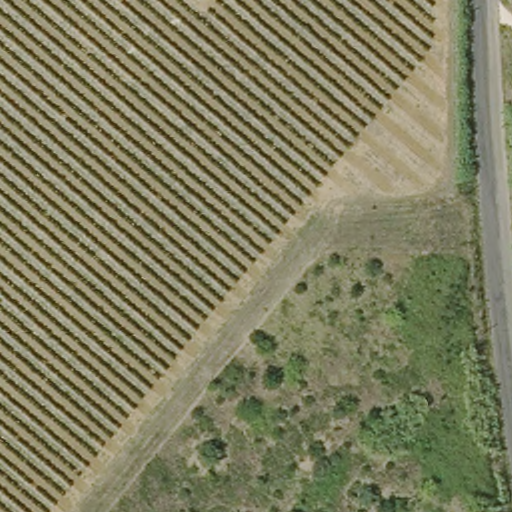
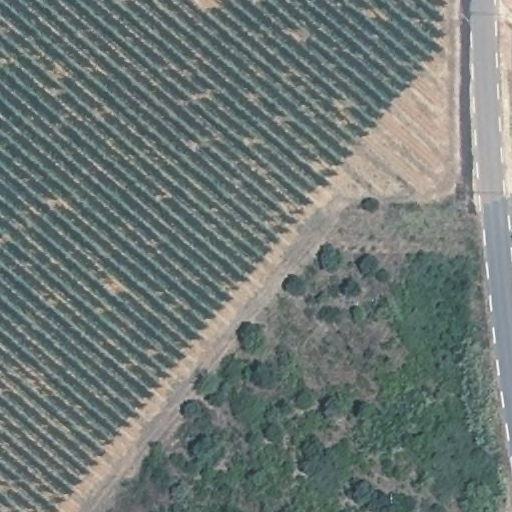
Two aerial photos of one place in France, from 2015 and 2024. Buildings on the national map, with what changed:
[]

